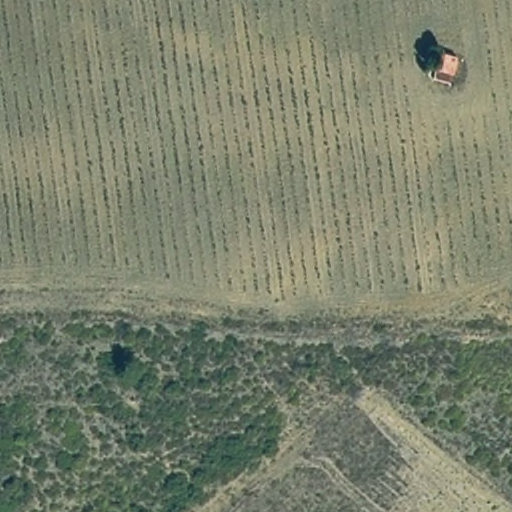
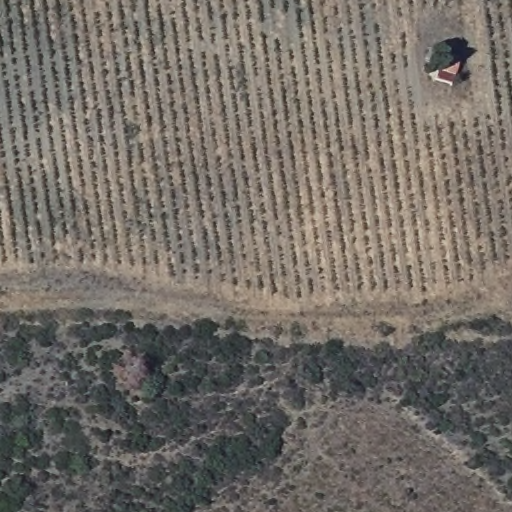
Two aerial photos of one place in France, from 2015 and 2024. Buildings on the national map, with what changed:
unchanged [(461,52),(454,75),(438,71),(444,46),(461,52)]

